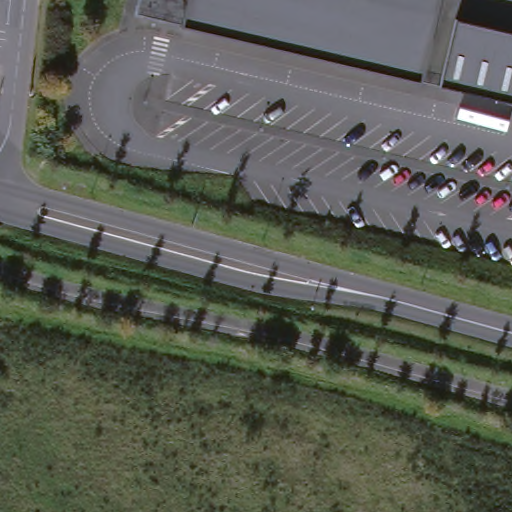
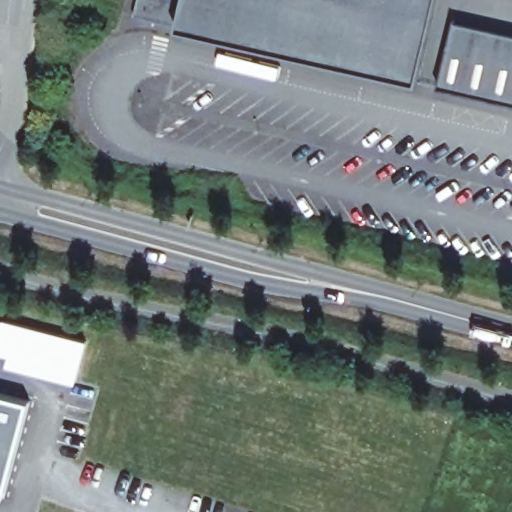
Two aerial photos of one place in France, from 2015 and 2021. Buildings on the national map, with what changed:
unchanged [(132,20),(138,0),(432,0),(410,87),(132,20)]
unchanged [(453,25),(512,39),(512,110),(436,92),(453,25)]
new [(84,344),(74,383),(6,366),(9,356),(0,354),(0,327),(1,323),(84,344)]
new [(5,500),(0,498),(0,397),(29,404),(5,500)]

